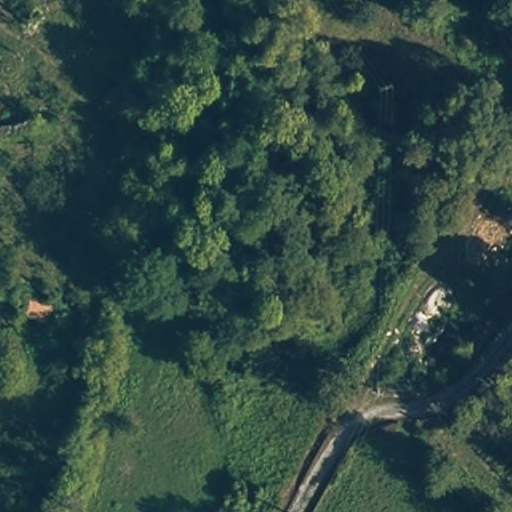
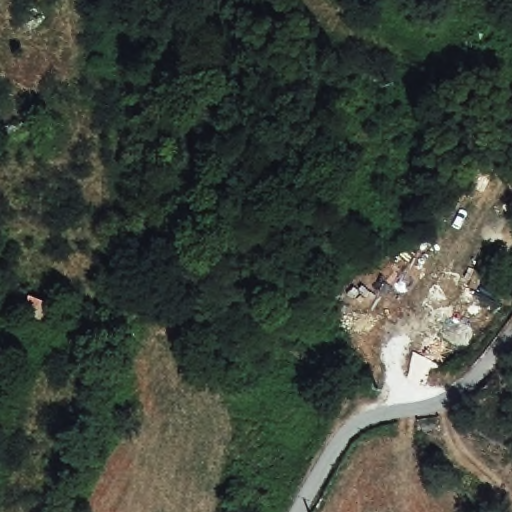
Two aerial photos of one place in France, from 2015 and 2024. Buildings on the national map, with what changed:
unchanged [(21,310),(27,292),(55,302),(48,322),(21,310)]

